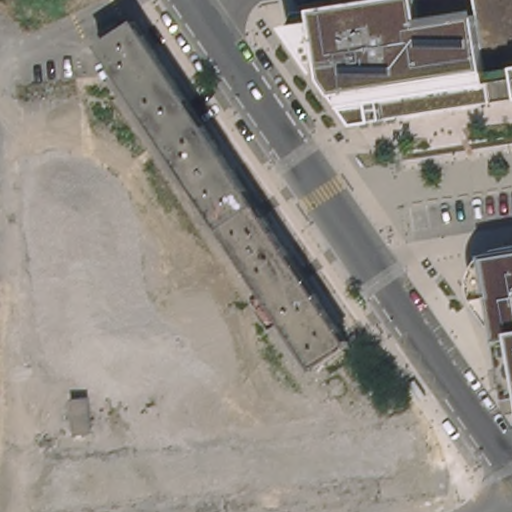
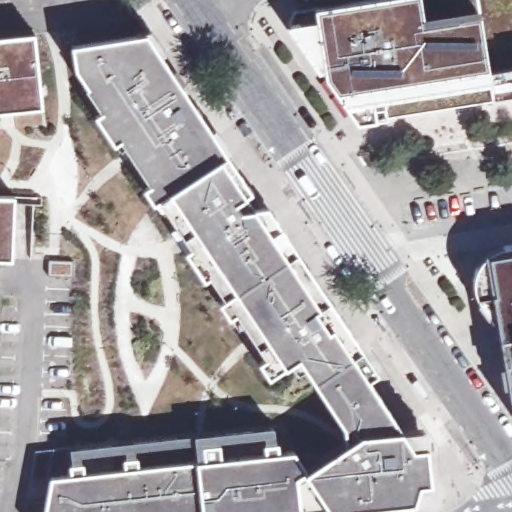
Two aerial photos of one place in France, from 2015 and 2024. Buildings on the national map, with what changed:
unchanged [(312,8),(367,0),(512,0),(512,98),(386,119),(356,125),(347,107),(287,26),(313,22),(312,8)]
demolished [(107,39),(144,14),(357,337),(321,362),(107,39)]
new [(35,31),(42,107),(0,111),(0,34),(35,31)]
new [(43,512),(49,477),(69,474),(68,465),(71,464),(69,448),(193,435),(272,426),(274,443),(277,442),(279,452),(293,451),(304,471),(344,444),(342,426),(304,370),(296,375),(290,363),(283,367),(267,378),(257,362),(264,358),(235,313),(228,318),(218,302),(222,299),(208,277),(202,281),(184,252),(189,247),(159,201),(153,205),(142,189),(148,185),(119,141),(113,145),(94,116),(99,112),(85,89),(87,88),(75,70),(70,45),(145,32),(251,192),(245,197),(253,209),(266,207),(376,372),(367,379),(401,430),(423,428),(425,446),(429,482),(431,501),(413,502),(325,511),(312,512),(43,512)]
demolished [(29,157),(72,152),(94,370),(52,374),(29,157)]
new [(17,193),(13,259),(0,258),(0,192),(17,193)]
unchanged [(497,325),(484,311),(473,299),(472,280),(477,266),(489,254),(502,249),(512,246),(512,411),(512,412),(497,325)]
unchanged [(10,302),(8,343),(0,344),(0,302),(10,302)]
demolished [(77,433),(74,397),(92,396),(95,431),(77,433)]
demolished [(42,464),(428,425),(432,467),(46,507),(42,464)]

